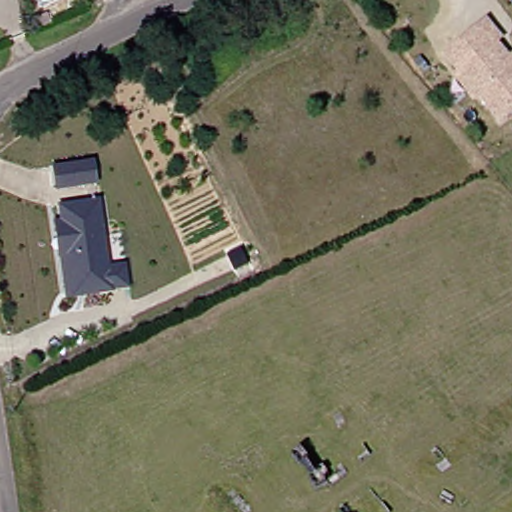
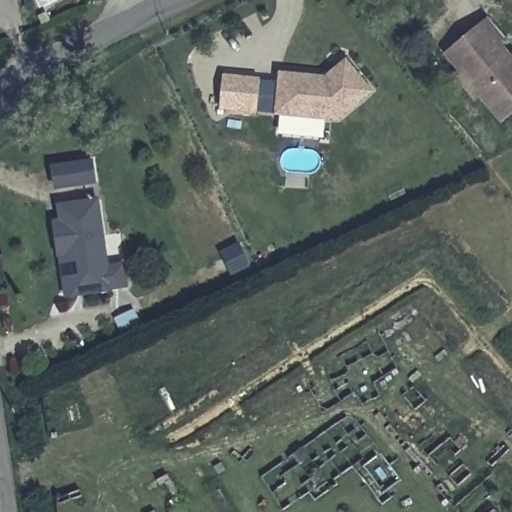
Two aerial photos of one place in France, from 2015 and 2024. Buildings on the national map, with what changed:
unchanged [(29,5),(37,1),(41,10),(33,13),(29,5)]
unchanged [(485,20),(499,38),(495,42),(508,59),(512,55),(512,109),(498,120),(476,93),(472,97),(454,75),(458,71),(444,53),(485,20)]
new [(280,73),(322,77),(340,62),(365,93),(333,118),(275,112),(258,110),(224,107),(227,75),(262,78),(280,80),(280,73)]
unchanged [(94,162),(97,183),(58,189),(55,168),(94,162)]
unchanged [(100,200),(114,286),(93,289),(85,287),(74,289),(69,256),(61,257),(56,223),(63,222),(60,206),(100,200)]

